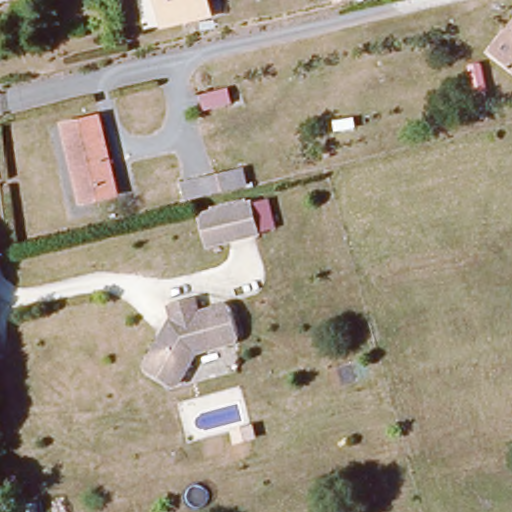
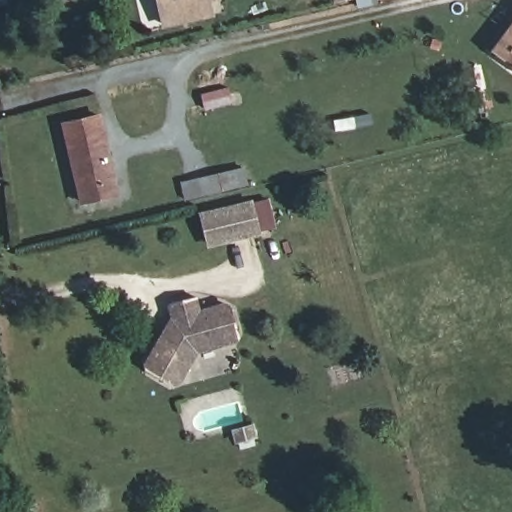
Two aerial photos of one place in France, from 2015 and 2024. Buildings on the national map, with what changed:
unchanged [(164,27),(158,0),(208,0),(211,15),(164,27)]
unchanged [(488,49),(512,20),(512,68),(488,49)]
unchanged [(97,117),(114,193),(79,201),(62,126),(97,117)]
unchanged [(185,202),(181,182),(245,167),(249,187),(185,202)]
unchanged [(249,204),(256,234),(208,246),(200,216),(249,204)]
unchanged [(166,305),(197,296),(199,307),(224,301),(228,302),(231,307),(239,332),(236,338),(232,341),(189,352),(176,378),(173,381),(167,381),(150,370),(147,365),(147,358),(169,320),(166,305)]

